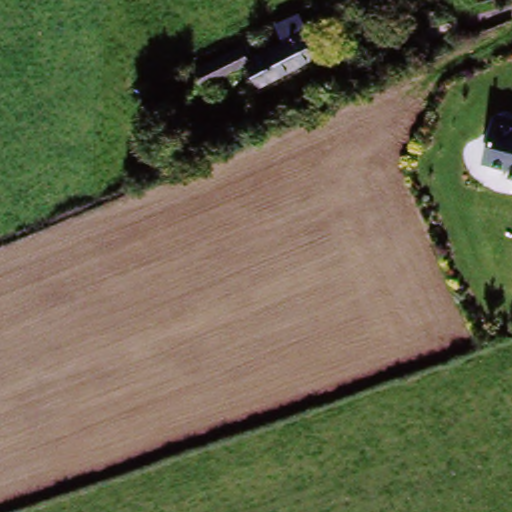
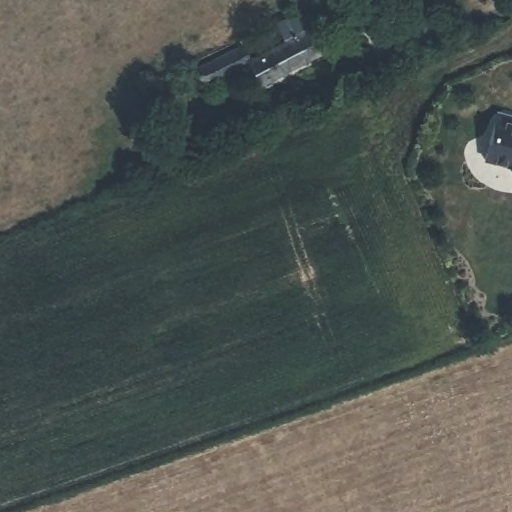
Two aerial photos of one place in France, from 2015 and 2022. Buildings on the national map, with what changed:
unchanged [(304,15),(315,34),(326,54),(271,85),(258,63),(293,45),(282,26),(304,15)]
unchanged [(258,63),(214,89),(204,74),(248,48),(258,63)]
unchanged [(512,176),(508,174),(509,171),(483,162),(497,110),(512,115),(512,176)]

